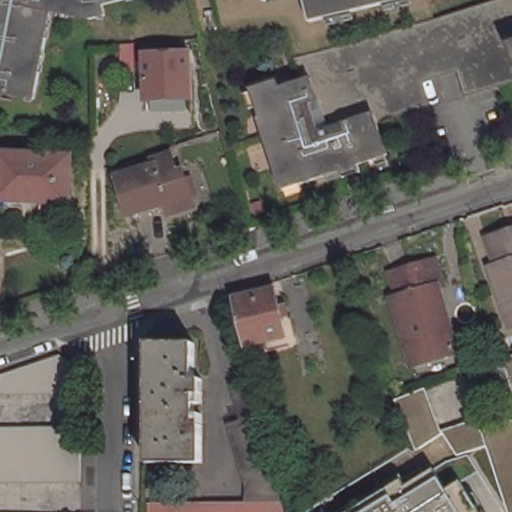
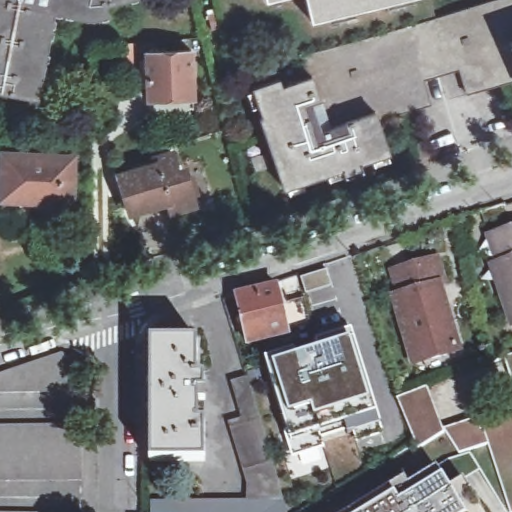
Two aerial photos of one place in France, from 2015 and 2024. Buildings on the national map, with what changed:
unchanged [(0,0),(107,0),(105,0),(109,9),(91,14),(54,7),(39,93),(0,85),(0,0)]
unchanged [(424,19),(434,16),(435,15),(436,15),(488,0),(512,0),(512,43),(512,44),(512,45),(512,81),(494,86),(484,89),(467,94),(464,82),(459,69),(423,79),(431,104),(417,108),(379,119),(374,109),(313,132),(303,105),(317,98),(311,74),(303,78),(296,55),(301,54),(359,38),(424,19)]
unchanged [(307,0),(396,0),(313,20),(307,0)]
unchanged [(191,50),(193,100),(163,103),(163,95),(148,96),(146,52),(191,50)]
unchanged [(284,189),(273,155),(271,148),(278,145),(274,134),(266,136),(261,118),(264,116),(253,86),(278,78),(281,84),(303,78),(311,74),(317,98),(303,105),(313,132),(374,109),(379,119),(389,153),(358,164),(344,169),(342,169),(284,189)]
unchanged [(156,163),(155,158),(175,150),(182,169),(178,171),(180,176),(188,173),(198,202),(173,210),(169,201),(131,214),(119,175),(156,163)]
unchanged [(72,156),(70,199),(1,197),(4,153),(72,156)]
unchanged [(512,228),(512,323),(504,294),(509,292),(490,236),(512,228)]
unchanged [(439,259),(447,284),(442,287),(462,349),(418,364),(397,299),(402,297),(394,274),(439,259)]
unchanged [(293,337),(265,344),(263,333),(243,338),(241,329),(231,291),(271,282),(276,300),(284,299),(293,337)]
new [(303,352),(352,335),(380,426),(321,439),(309,411),(281,418),(264,362),(303,352)]
unchanged [(151,461),(151,407),(151,396),(151,341),(197,341),(197,363),(198,376),(204,377),(204,461),(176,461),(151,461)]
unchanged [(0,374),(63,353),(83,368),(83,392),(0,393),(0,374)]
unchanged [(261,418),(261,420),(286,502),(249,502),(248,482),(230,425),(243,421),(233,384),(248,379),(261,418)]
unchanged [(431,387),(445,434),(422,448),(418,451),(416,452),(412,446),(414,444),(400,399),(431,387)]
new [(309,411),(321,439),(323,446),(291,457),(281,418),(309,411)]
unchanged [(492,459),(488,447),(469,452),(459,454),(450,441),(445,434),(479,424),(483,434),(512,425),(512,512),(510,512),(492,459)]
unchanged [(88,480),(68,480),(0,481),(0,426),(66,426),(88,426),(88,480)]
unchanged [(403,480),(405,484),(433,468),(448,488),(461,479),(480,512),(352,512),(403,480)]
unchanged [(151,502),(151,501),(173,501),(249,502),(286,502),(290,512),(151,512),(151,502)]

